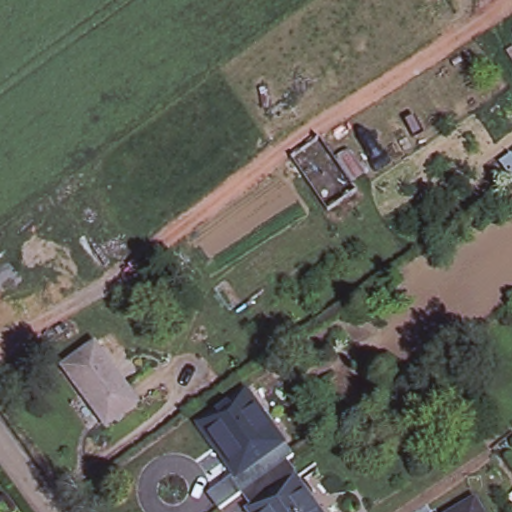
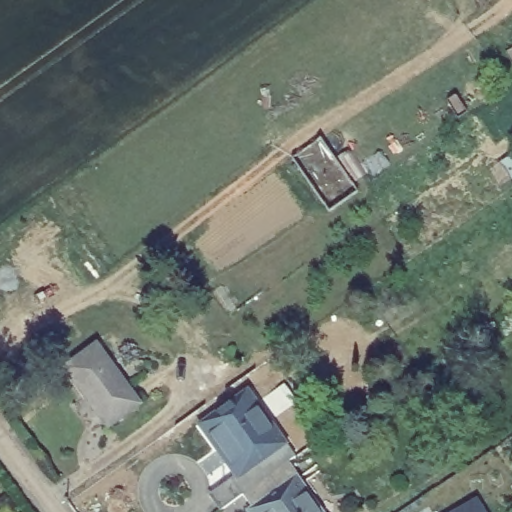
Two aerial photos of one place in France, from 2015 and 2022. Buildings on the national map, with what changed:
unchanged [(103,430),(74,391),(60,372),(92,349),(105,368),(133,407),(103,430)]
unchanged [(241,494),(195,430),(237,401),(283,464),(241,494)]
unchanged [(342,512),(321,512),(286,462),(300,452),(342,512)]
unchanged [(283,464),(286,462),(321,512),(248,512),(245,508),(249,506),(241,494),(283,464)]
unchanged [(469,500),(477,512),(448,512),(469,500)]

